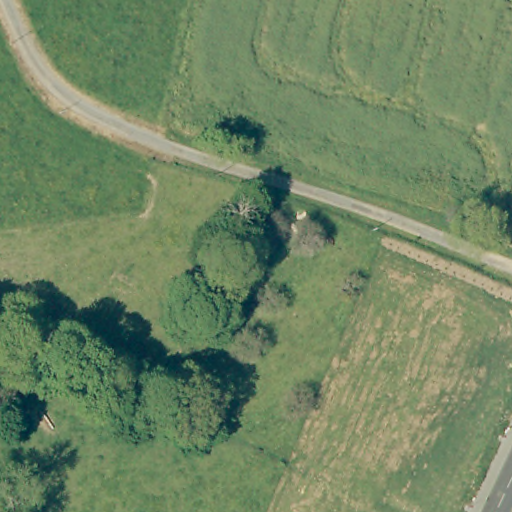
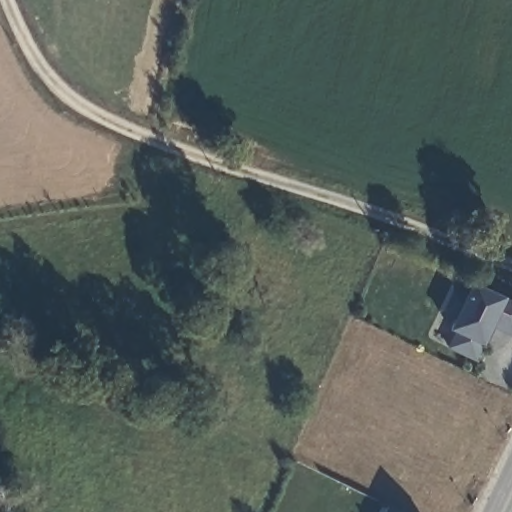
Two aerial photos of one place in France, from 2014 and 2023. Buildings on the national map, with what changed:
new [(487,345),(482,343),(476,359),(447,347),(455,330),(449,328),(454,319),(436,311),(448,284),(466,292),(471,282),(505,297),(512,301),(512,336),(493,328),(487,345)]
new [(390,506),(402,512),(386,512),(390,506)]

